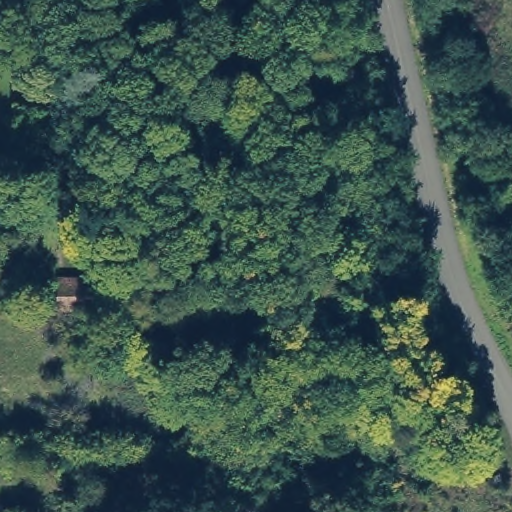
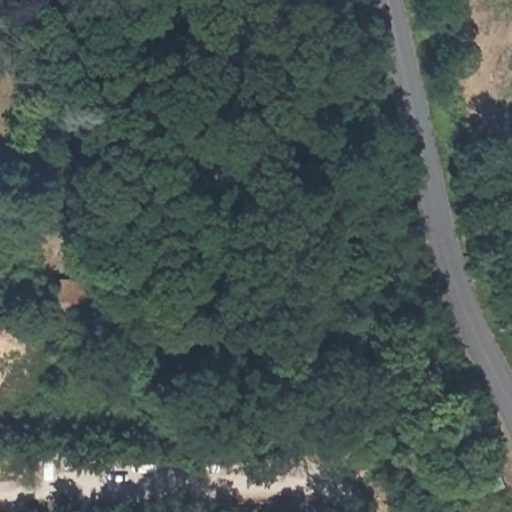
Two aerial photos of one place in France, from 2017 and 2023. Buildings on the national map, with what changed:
unchanged [(106,303),(55,301),(54,271),(106,273),(106,303)]
unchanged [(500,475),(504,487),(493,491),(489,479),(500,475)]

